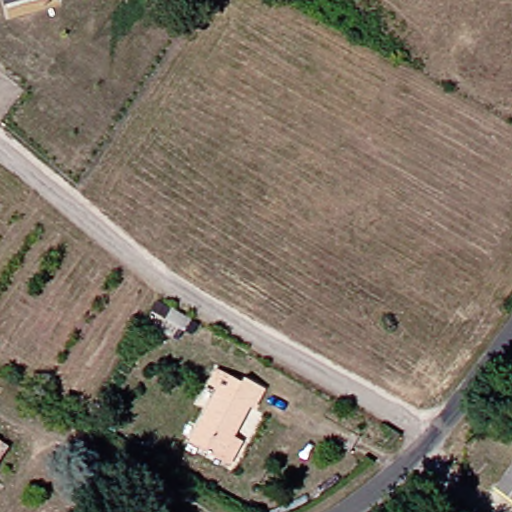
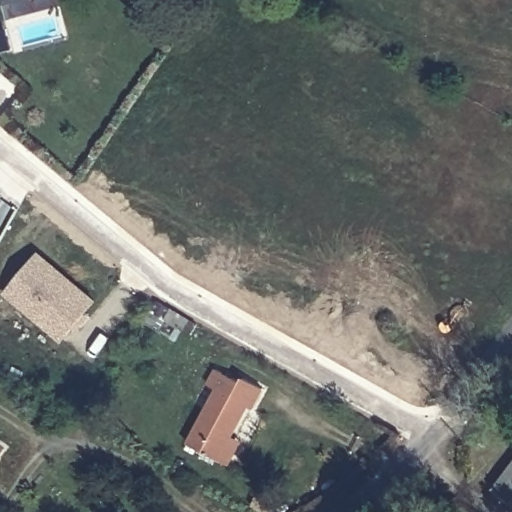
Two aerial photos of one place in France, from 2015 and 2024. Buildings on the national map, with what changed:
unchanged [(3,5),(2,0),(24,0),(3,5)]
new [(39,252),(98,301),(63,343),(4,295),(21,273),(39,252)]
new [(184,332),(168,323),(164,331),(154,325),(165,305),(192,319),(184,332)]
unchanged [(223,465),(211,457),(180,442),(205,390),(196,386),(203,370),(230,383),(237,373),(256,383),(244,409),(235,406),(223,436),(235,442),(223,465)]
new [(0,454),(0,447),(4,450),(0,454)]
unchanged [(485,486),(512,449),(512,503),(485,486)]

